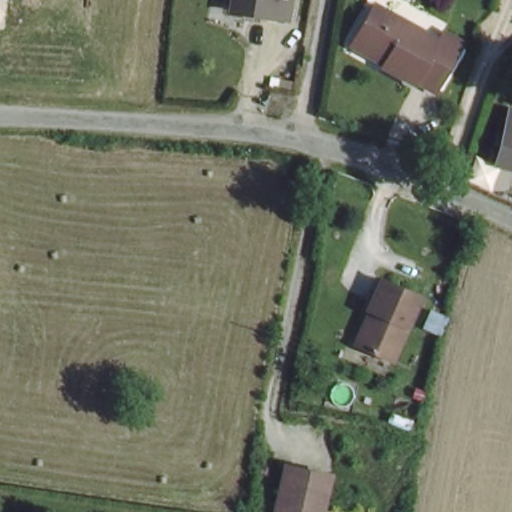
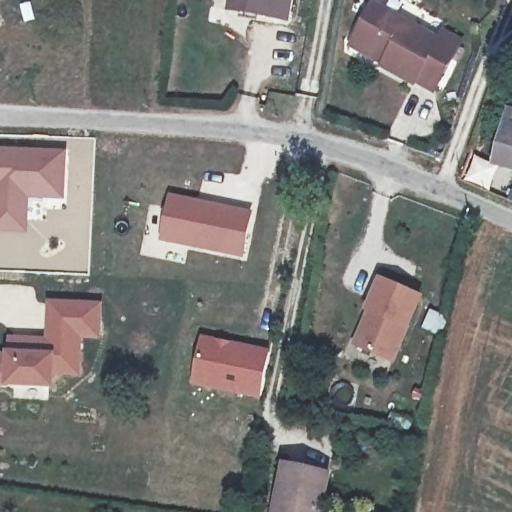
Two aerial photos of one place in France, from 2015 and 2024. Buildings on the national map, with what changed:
unchanged [(283,0),(281,15),(223,7),(224,0),(283,0)]
unchanged [(354,40),(374,5),(438,39),(440,34),(461,46),(433,93),(412,81),(411,84),(381,68),(382,64),(350,47),(354,40)]
unchanged [(504,111),(512,112),(512,166),(492,162),(504,111)]
new [(18,136),(68,136),(96,137),(94,164),(68,168),(67,201),(30,199),(28,235),(0,233),(0,144),(19,144),(18,136)]
new [(244,258),(160,242),(170,192),(254,212),(244,258)]
unchanged [(366,311),(366,307),(378,279),(418,295),(391,360),(360,348),(352,344),(366,311)]
new [(102,340),(82,339),(81,378),(56,376),(55,389),(16,386),(15,387),(0,386),(0,353),(5,354),(5,350),(9,350),(8,335),(45,336),(48,299),(104,303),(102,340)]
new [(200,334),(271,348),(260,398),(190,385),(200,334)]
unchanged [(340,461),(330,512),(283,512),(284,507),(289,505),(291,494),(288,488),(294,454),(340,461)]

